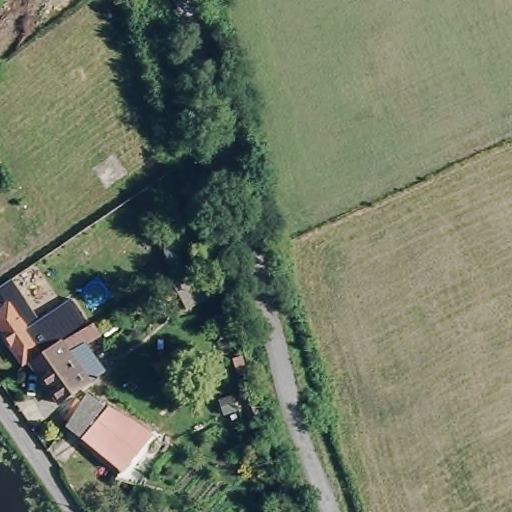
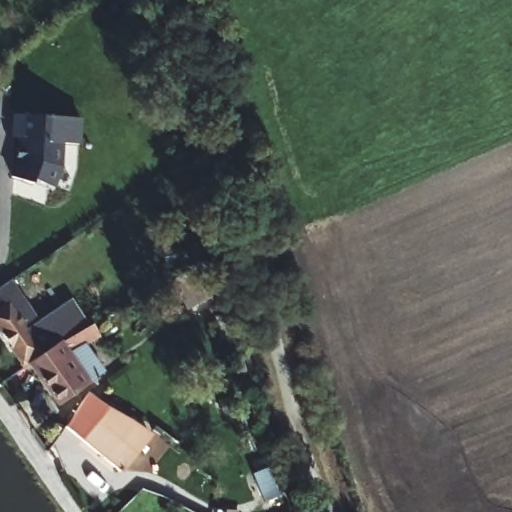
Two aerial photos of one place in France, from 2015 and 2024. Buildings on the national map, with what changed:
new [(78,121),(76,146),(60,146),(58,169),(51,189),(31,181),(30,186),(10,178),(16,160),(17,139),(11,138),(12,116),(78,121)]
unchanged [(200,287),(204,303),(181,309),(176,292),(165,295),(161,281),(195,272),(200,287)]
unchanged [(10,281),(36,321),(71,298),(97,336),(83,348),(102,374),(86,384),(67,356),(81,346),(73,335),(52,349),(35,325),(25,332),(0,294),(0,288),(10,281)]
unchanged [(40,357),(38,355),(21,366),(0,336),(0,294),(25,332),(35,325),(52,349),(40,357)]
unchanged [(34,375),(28,365),(40,357),(52,349),(73,335),(81,346),(67,356),(86,384),(72,394),(56,406),(34,375)]
unchanged [(139,493),(110,482),(118,475),(64,432),(86,398),(149,436),(152,430),(174,444),(139,493)]

